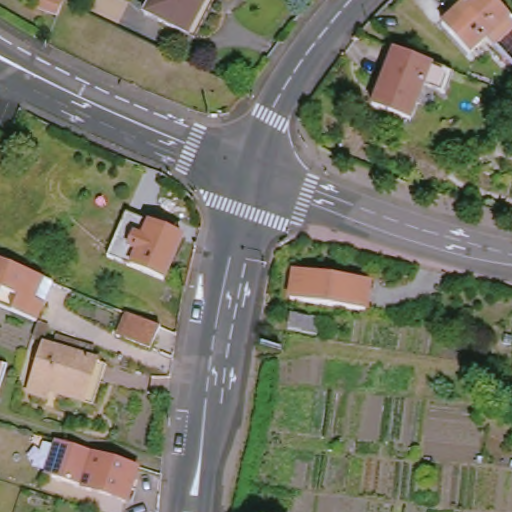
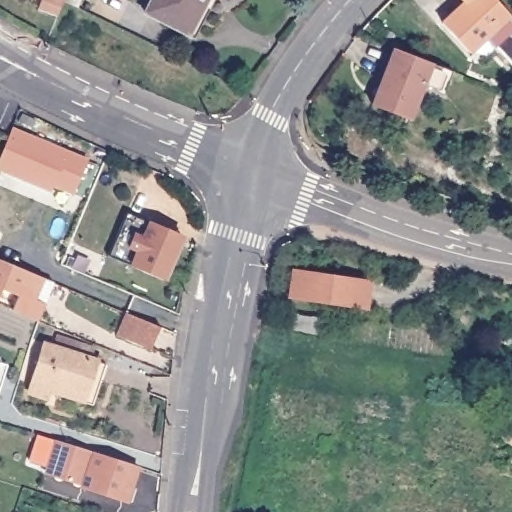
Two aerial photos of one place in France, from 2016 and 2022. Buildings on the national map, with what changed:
unchanged [(68,15),(48,7),(51,0),(74,0),(68,15)]
unchanged [(149,16),(158,0),(209,0),(189,37),(149,16)]
unchanged [(512,13),(512,62),(491,39),(476,52),(446,21),(468,2),(465,0),(501,0),(512,13)]
unchanged [(434,67),(413,122),(375,108),(390,71),(394,71),(400,53),(434,67)]
new [(53,186),(50,192),(0,171),(0,160),(14,127),(88,159),(73,194),(53,186)]
unchanged [(113,259),(131,216),(187,240),(169,283),(113,259)]
unchanged [(37,321),(13,311),(18,296),(2,290),(0,295),(0,261),(43,278),(53,282),(44,303),(37,321)]
unchanged [(374,282),(369,309),(338,304),(294,297),(299,270),(374,282)]
unchanged [(323,311),(320,330),(293,325),(296,307),(323,311)]
unchanged [(163,331),(153,353),(121,339),(131,318),(163,331)]
unchanged [(46,395),(48,388),(33,383),(44,347),(106,367),(93,410),(46,395)]
unchanged [(0,376),(0,361),(4,362),(0,376)]
unchanged [(134,503),(90,490),(59,481),(55,472),(63,444),(74,447),(145,469),(134,503)]

